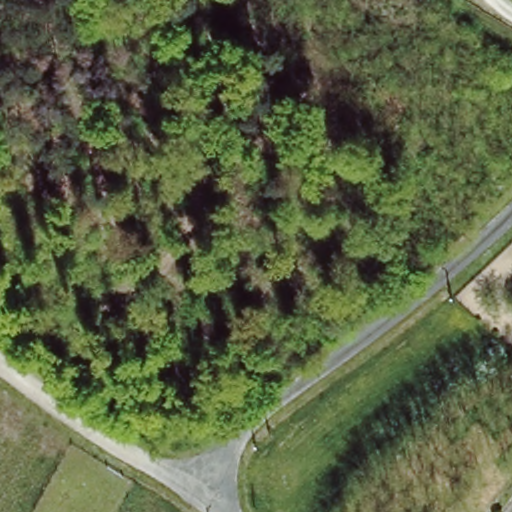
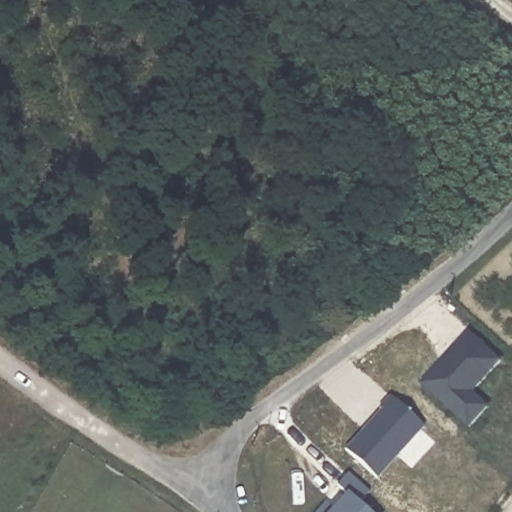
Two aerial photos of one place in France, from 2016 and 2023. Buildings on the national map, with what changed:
new [(469,332),(500,360),(472,391),(488,405),(470,425),(422,383),(469,332)]
new [(390,395),(424,426),(377,478),(345,450),(382,410),(379,408),(390,395)]
new [(369,512),(321,512),(328,504),(335,509),(349,494),(339,485),(350,473),(372,492),(364,508),(369,512)]

